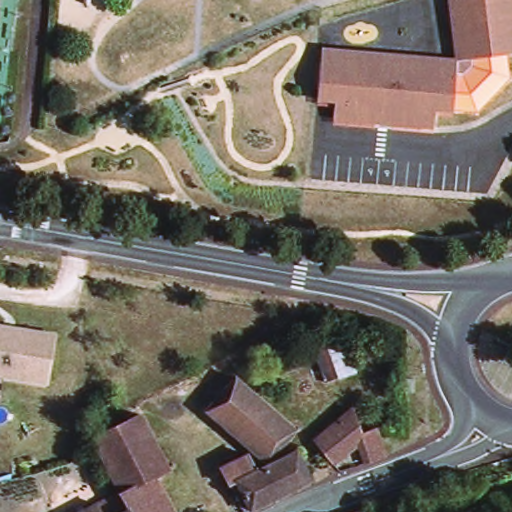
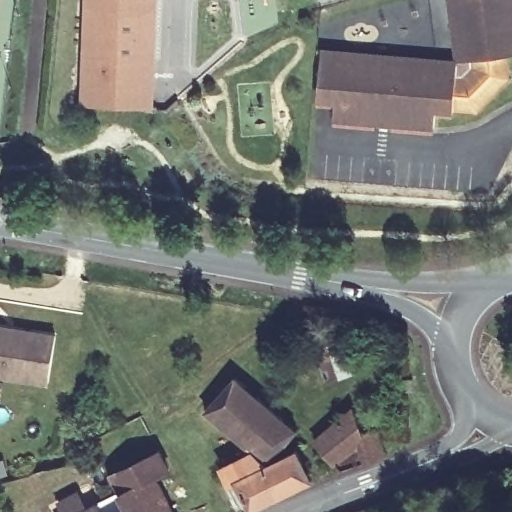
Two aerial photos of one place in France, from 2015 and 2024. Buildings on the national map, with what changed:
new [(157,0),(152,111),(78,107),(82,0),(157,0)]
unchanged [(512,80),(479,115),(438,112),(435,130),(335,123),(337,107),(318,106),(323,46),(455,59),(449,0),(512,0),(512,53),(508,54),(512,80)]
unchanged [(56,332),(49,385),(0,377),(0,323),(56,332)]
unchanged [(351,343),(360,373),(326,386),(314,349),(351,343)]
unchanged [(311,481),(250,511),(221,469),(254,452),(206,411),(235,378),(297,431),(268,464),(297,451),(311,481)]
unchanged [(413,392),(401,393),(400,379),(412,379),(413,392)]
unchanged [(386,457),(366,464),(359,445),(334,464),(315,442),(358,407),(361,433),(377,429),(386,457)]
unchanged [(141,416),(169,470),(155,477),(119,495),(118,493),(92,440),(141,416)]
unchanged [(173,512),(128,512),(119,495),(155,477),(173,512)]
unchanged [(119,495),(128,512),(82,512),(97,504),(118,493),(119,495)]

